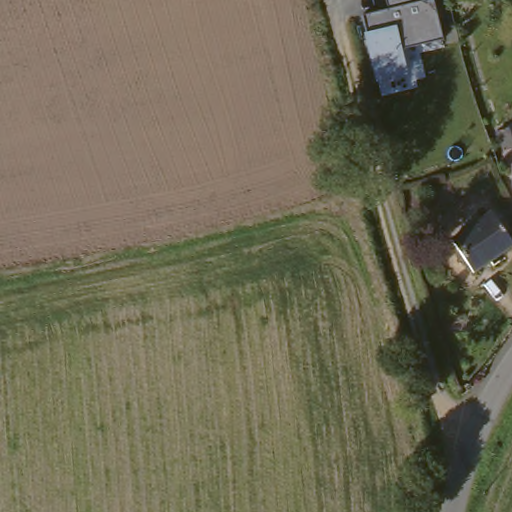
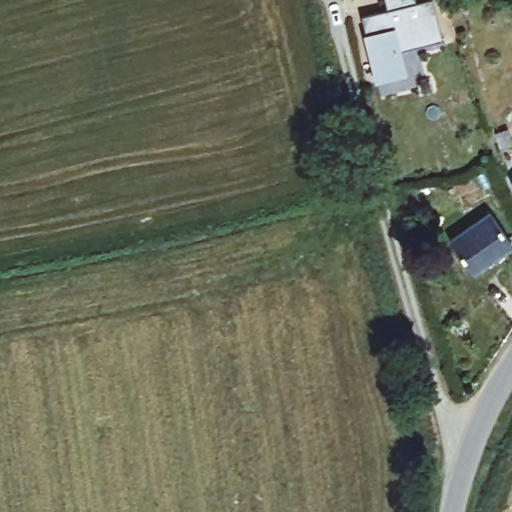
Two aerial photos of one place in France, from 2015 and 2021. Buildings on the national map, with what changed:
unchanged [(368,32),(365,16),(388,9),(387,0),(417,0),(417,2),(426,0),(434,0),(443,39),(401,49),(408,76),(375,82),(362,33),(368,32)]
unchanged [(499,219),(510,252),(465,271),(451,238),(499,219)]

